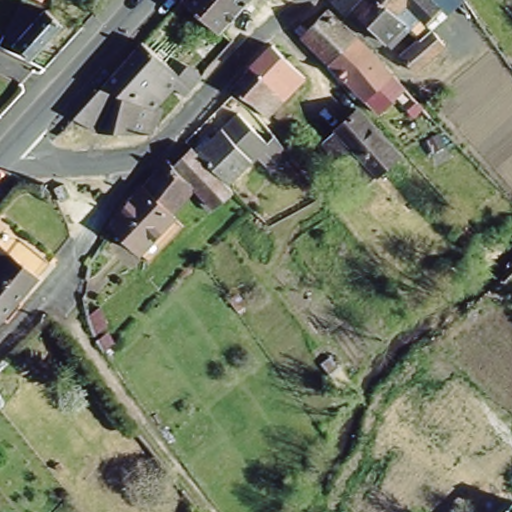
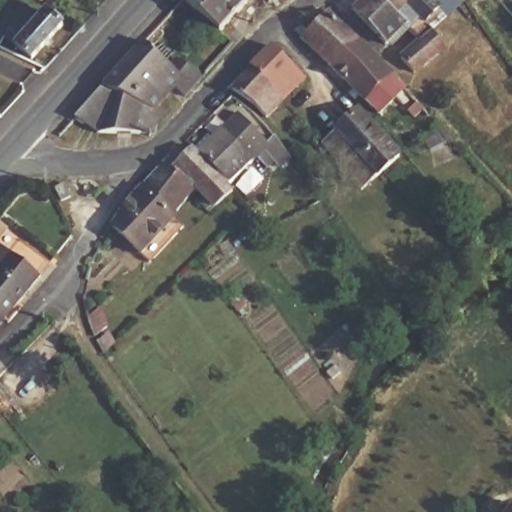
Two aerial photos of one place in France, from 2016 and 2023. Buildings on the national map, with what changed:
unchanged [(26,4),(29,0),(55,0),(45,15),(26,4)]
unchanged [(249,0),(220,32),(183,0),(249,0)]
unchanged [(405,2),(402,5),(411,14),(405,20),(407,22),(388,41),(354,9),(362,0),(435,0),(440,5),(425,21),(405,2)]
unchanged [(368,45),(355,59),(338,43),(324,58),(296,32),(322,5),(368,45)]
unchanged [(23,30),(35,16),(47,27),(52,22),(68,37),(36,72),(10,49),(20,27),(23,30)]
unchanged [(446,46),(415,71),(402,56),(432,30),(446,46)]
unchanged [(100,84),(138,42),(165,67),(173,59),(195,70),(198,78),(181,97),(167,87),(152,107),(156,110),(150,133),(95,131),(95,130),(70,117),(100,84)]
unchanged [(355,59),(368,45),(413,95),(403,104),(393,92),(376,107),(324,58),(338,43),(355,59)]
unchanged [(307,77),(285,99),(251,67),(274,45),(307,77)]
unchanged [(285,99),(269,116),(258,102),(236,90),(232,87),(251,67),(285,99)]
unchanged [(262,145),(232,175),(202,142),(244,101),(275,134),(280,127),(295,148),(285,155),(281,150),(274,157),(262,145)]
unchanged [(336,160),(321,143),(336,130),(360,109),(401,154),(385,169),(377,175),(360,190),(336,160)]
unchanged [(202,142),(232,175),(238,181),(216,201),(208,191),(211,189),(201,177),(183,198),(152,171),(175,149),(181,155),(196,135),(202,142)]
unchanged [(190,212),(155,248),(118,215),(128,201),(132,190),(148,175),(190,212)]
unchanged [(0,233),(0,232),(6,237),(3,241),(14,249),(10,254),(28,266),(39,251),(50,261),(3,317),(0,314),(0,233)]
unchanged [(57,326),(38,344),(25,332),(45,313),(57,326)]
unchanged [(0,321),(0,314),(3,317),(0,321)]

